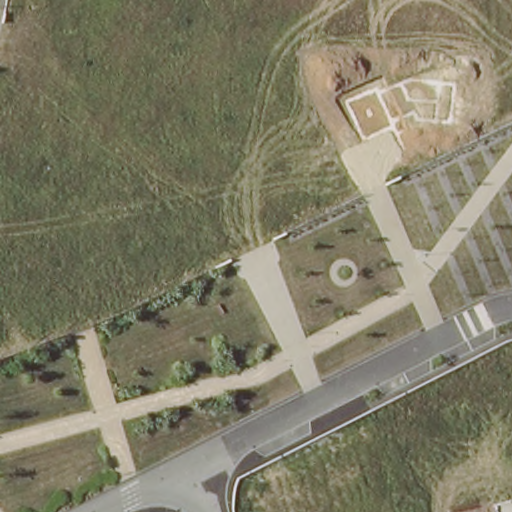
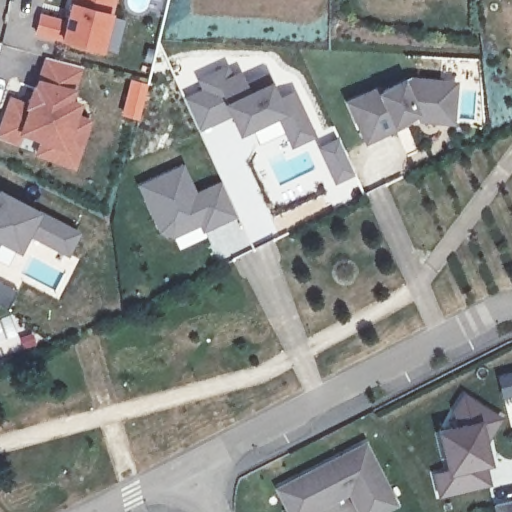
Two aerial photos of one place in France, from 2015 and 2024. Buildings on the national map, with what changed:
new [(68,1),(68,0),(114,0),(110,14),(101,53),(59,40),(33,34),(37,13),(63,20),(68,1)]
new [(30,104),(45,58),(85,69),(77,101),(85,104),(82,117),(95,121),(78,174),(35,158),(40,144),(25,139),(21,149),(0,141),(0,128),(10,98),(30,104)]
new [(202,91),(197,81),(230,65),(234,76),(242,73),(247,82),(270,72),(282,97),(295,90),(316,138),(293,150),(280,123),(243,139),(234,119),(201,134),(185,99),(202,91)]
unchanged [(375,83),(405,69),(436,73),(450,74),(446,114),(431,112),(413,109),(410,104),(389,114),(390,117),(360,131),(342,93),(373,79),(375,83)]
new [(186,165),(198,194),(223,182),(239,219),(203,235),(200,229),(175,240),(161,237),(138,187),(186,165)]
new [(83,234),(70,259),(32,240),(25,257),(1,244),(0,247),(0,190),(83,234)]
new [(501,419),(485,443),(490,464),(481,467),(490,486),(437,499),(431,474),(445,471),(436,429),(443,428),(461,394),(501,419)]
new [(364,444),(395,504),(379,512),(359,512),(348,492),(342,496),(340,492),(332,496),(331,501),(309,512),(288,512),(276,489),(292,481),(364,444)]
new [(495,504),(512,500),(512,512),(497,512),(495,504)]

